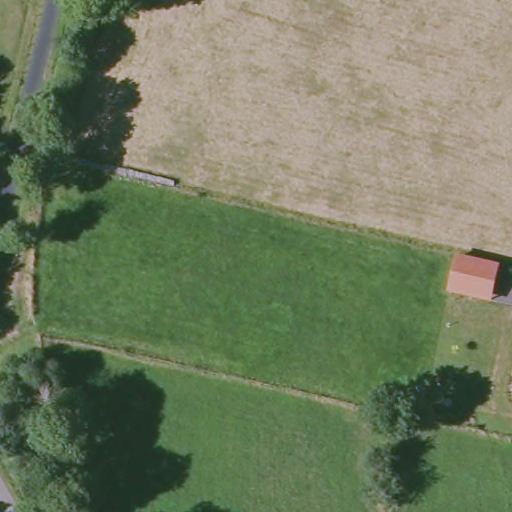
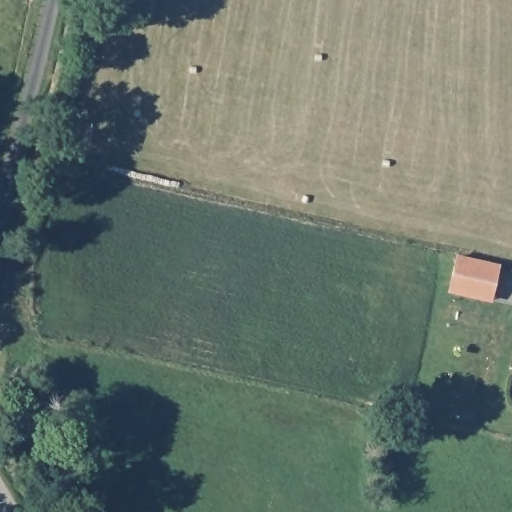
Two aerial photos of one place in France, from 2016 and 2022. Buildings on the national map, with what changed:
unchanged [(457,256),(500,265),(492,302),(447,292),(457,256)]

